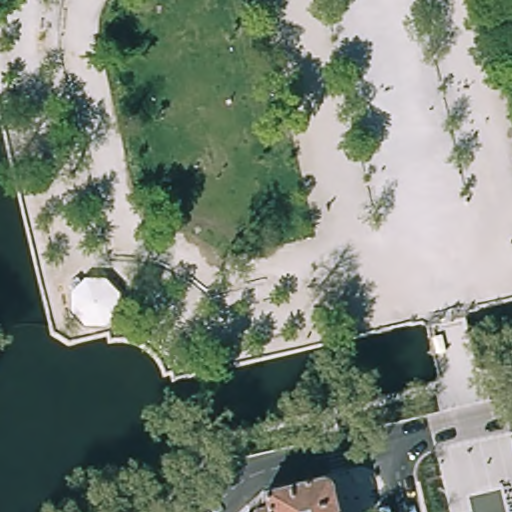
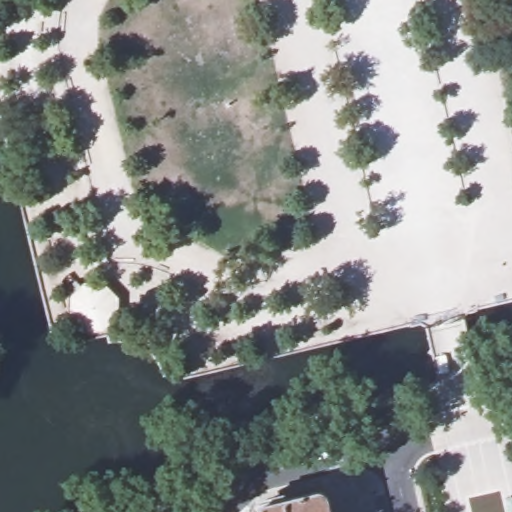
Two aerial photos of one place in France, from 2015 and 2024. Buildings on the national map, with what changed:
unchanged [(317,495),(322,495),(327,498),(328,502),(330,512),(258,512),(260,507),(317,495)]

